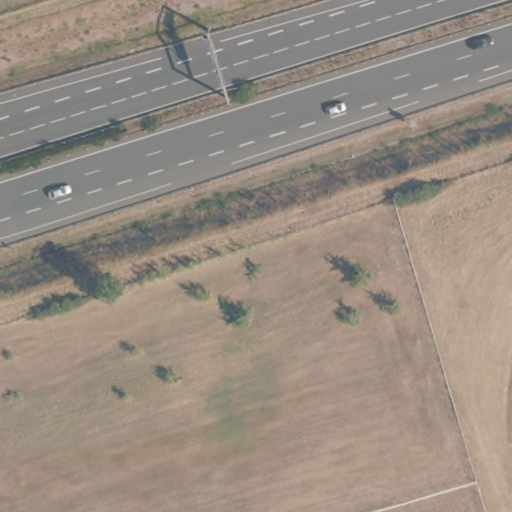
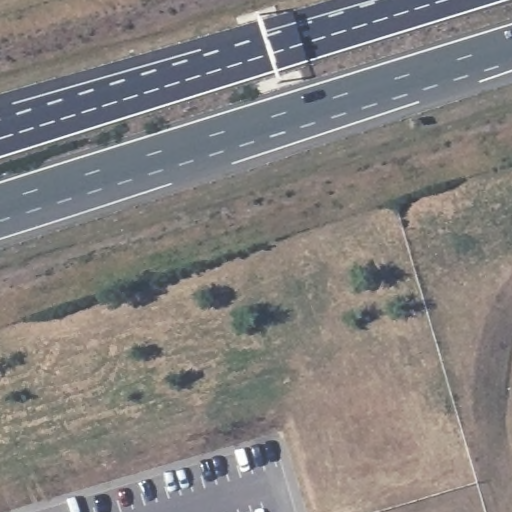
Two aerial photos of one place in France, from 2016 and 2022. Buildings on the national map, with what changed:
[]

